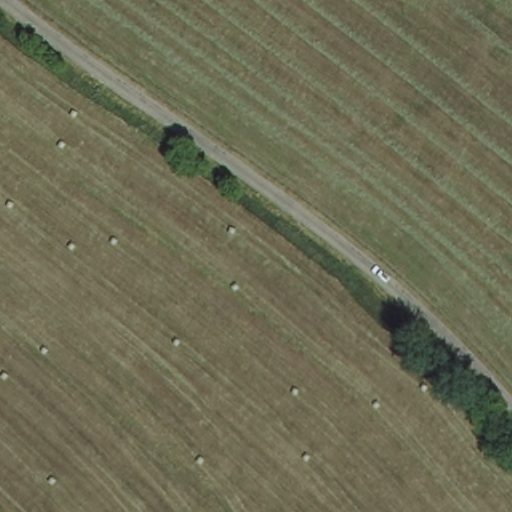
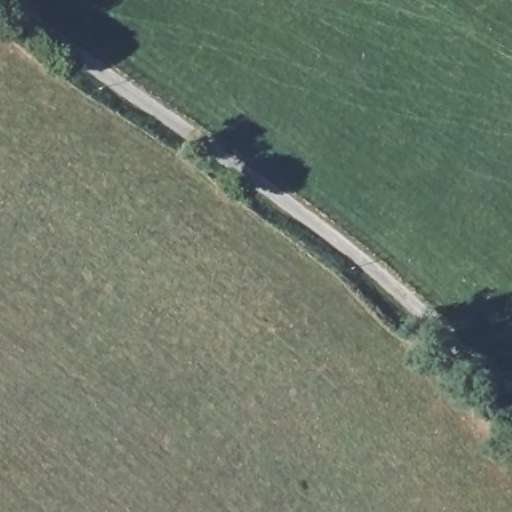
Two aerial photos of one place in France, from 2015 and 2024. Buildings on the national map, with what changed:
[]

